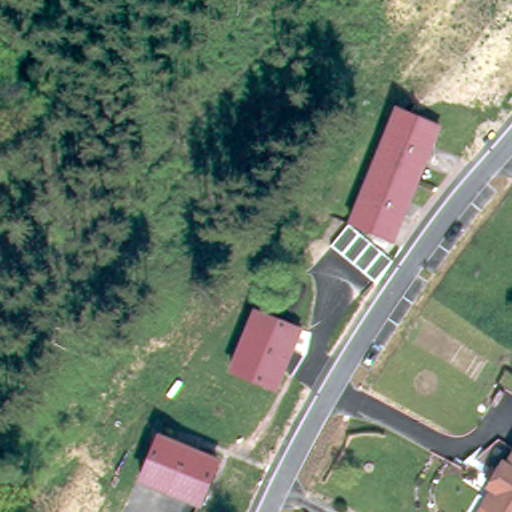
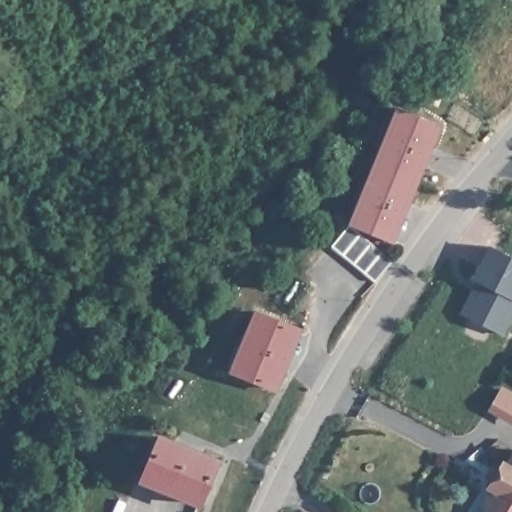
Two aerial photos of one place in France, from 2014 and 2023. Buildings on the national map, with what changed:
unchanged [(395,242),(355,223),(402,109),(444,126),(395,242)]
unchanged [(369,273),(357,264),(347,255),(337,245),(354,224),(365,233),(376,242),(387,251),(397,260),(379,282),(369,273)]
new [(457,312),(474,280),(470,278),(487,244),(512,258),(512,316),(502,335),(457,312)]
unchanged [(273,388),(232,370),(257,312),(298,329),(273,388)]
new [(500,387),(512,394),(512,423),(510,425),(485,408),(500,387)]
unchanged [(159,437),(217,462),(200,503),(142,477),(159,437)]
unchanged [(490,488),(485,485),(499,460),(504,462),(512,448),(512,512),(477,512),(483,501),(490,488)]

